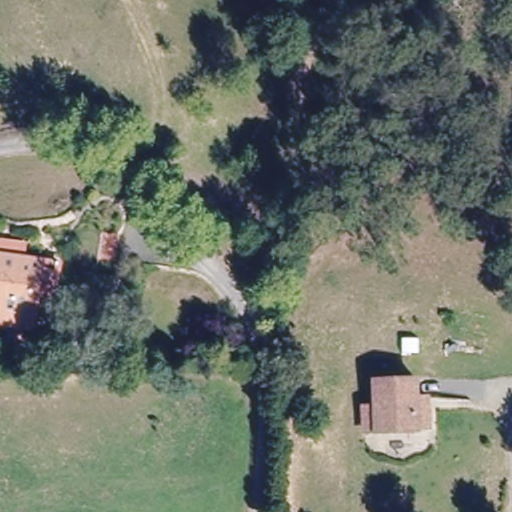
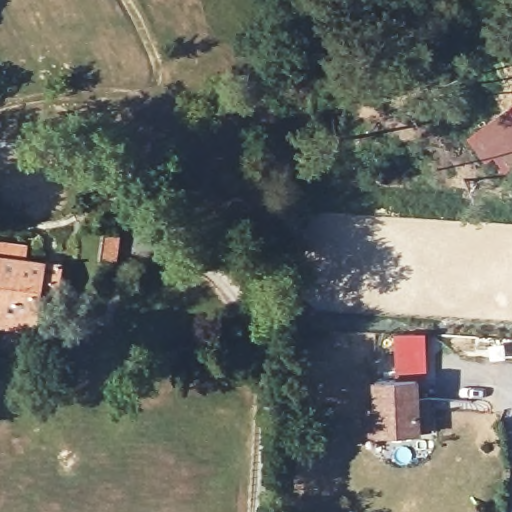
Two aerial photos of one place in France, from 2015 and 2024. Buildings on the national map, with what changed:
new [(512,112),(512,165),(498,174),(472,132),(510,108),(512,112)]
unchanged [(103,262),(106,236),(121,237),(117,263),(103,262)]
unchanged [(0,237),(29,240),(27,255),(0,252),(0,237)]
unchanged [(36,325),(0,321),(0,252),(27,255),(63,260),(59,287),(58,296),(40,294),(36,325)]
unchanged [(381,430),(367,431),(365,404),(379,403),(377,378),(417,376),(418,393),(430,393),(430,402),(431,422),(421,423),(421,428),(400,429),(381,430)]

